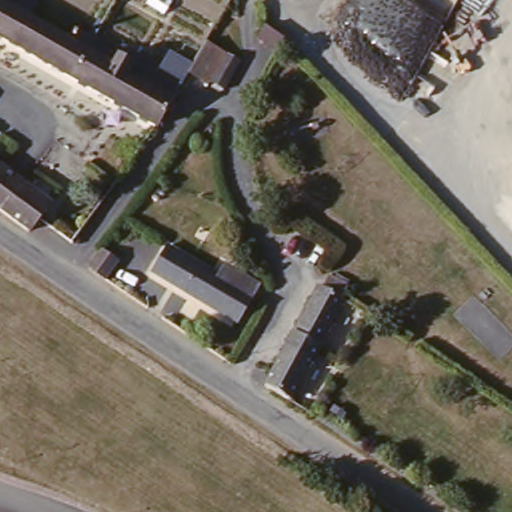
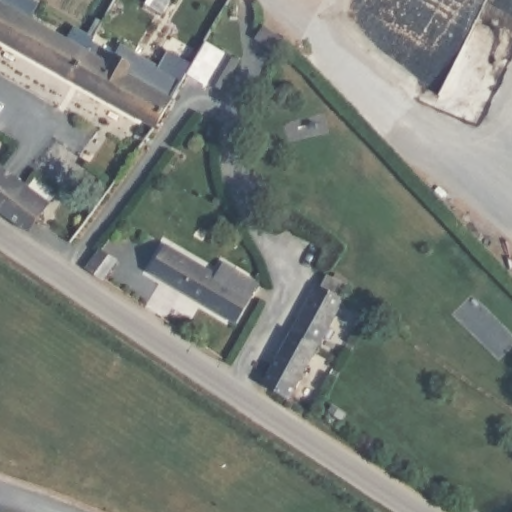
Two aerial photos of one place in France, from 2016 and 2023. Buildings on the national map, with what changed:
unchanged [(38,4),(32,14),(44,22),(77,45),(82,37),(95,46),(70,84),(0,38),(0,0),(33,0),(38,4)]
unchanged [(103,52),(100,59),(117,70),(123,64),(142,75),(150,63),(183,86),(171,104),(150,137),(70,84),(95,46),(103,52)]
unchanged [(183,86),(201,60),(203,56),(223,70),(203,100),(183,86)]
unchanged [(0,170),(28,189),(10,216),(1,210),(0,210),(0,171),(0,170)]
unchanged [(45,240),(38,235),(10,216),(28,189),(33,192),(57,209),(62,212),(45,240)]
unchanged [(222,272),(234,280),(250,292),(243,301),(248,305),(233,326),(177,288),(148,270),(163,247),(191,266),(214,282),(222,272)]
unchanged [(88,249),(101,258),(102,261),(102,266),(93,279),(75,267),(88,249)]
unchanged [(321,283),(330,269),(351,280),(343,295),(347,298),(281,407),(256,391),(321,283)]

